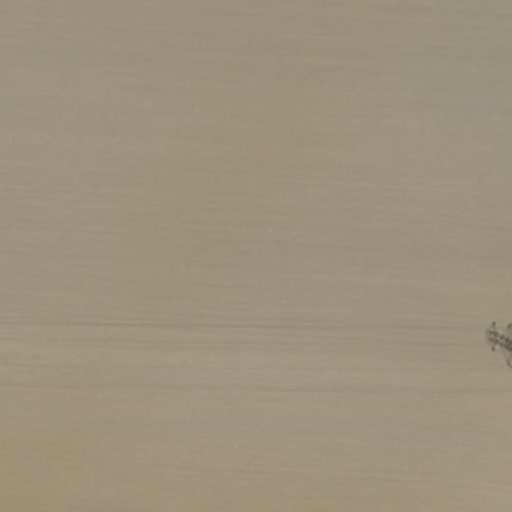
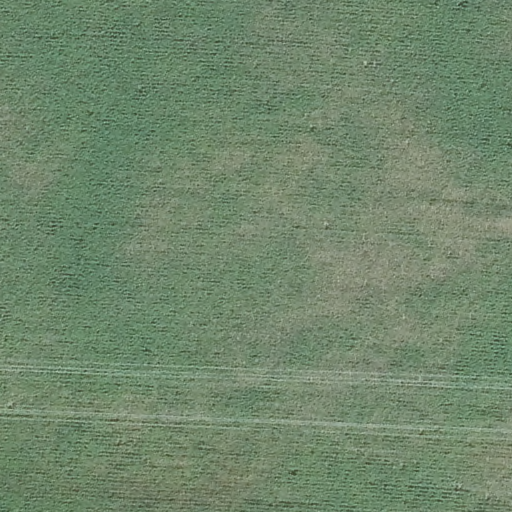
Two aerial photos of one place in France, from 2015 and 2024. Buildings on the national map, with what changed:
[]

